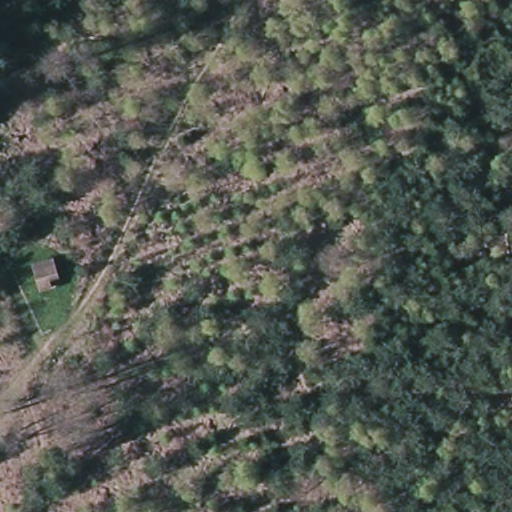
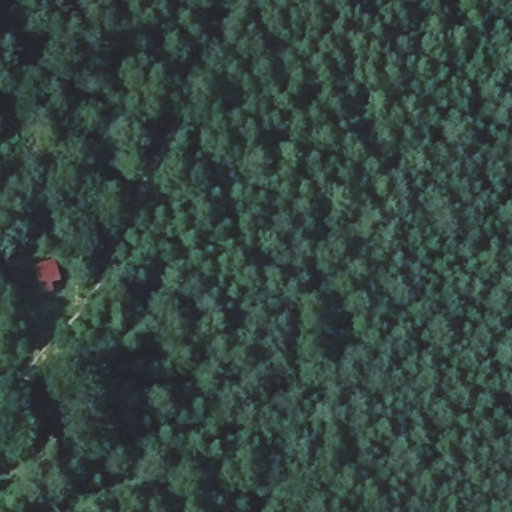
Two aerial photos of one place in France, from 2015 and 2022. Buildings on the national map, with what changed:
unchanged [(57,261),(65,290),(42,296),(34,267),(57,261)]

